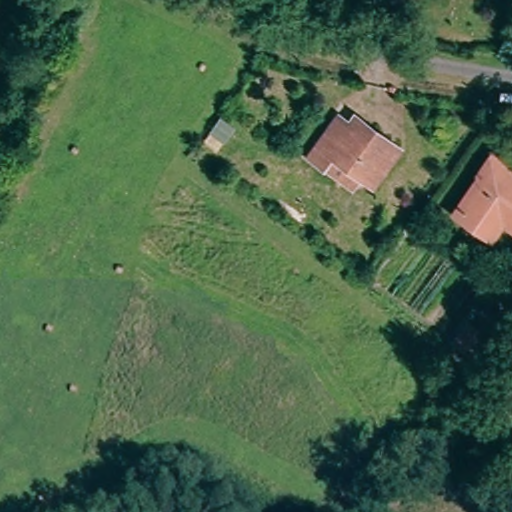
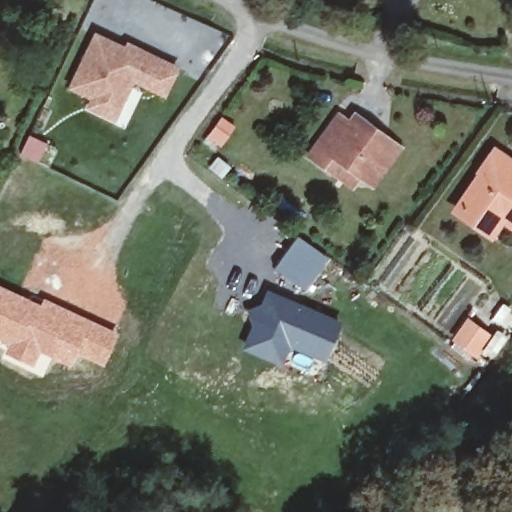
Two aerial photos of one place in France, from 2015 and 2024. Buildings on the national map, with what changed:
new [(125,45),(128,39),(180,66),(165,97),(134,83),(115,122),(85,109),(90,99),(65,89),(95,31),(125,45)]
unchanged [(306,157),(336,115),(355,130),(367,114),(407,144),(402,150),(375,186),(366,199),(325,170),(306,157)]
unchanged [(512,155),(512,224),(506,220),(493,237),(453,209),(500,145),(512,155)]
demolished [(288,190),(324,214),(313,240),(274,217),(288,190)]
new [(43,296),(118,331),(103,366),(76,353),(70,365),(41,353),(33,368),(2,353),(6,345),(0,342),(0,283),(40,301),(43,296)]
new [(340,321),(323,357),(275,336),(266,355),(247,345),(270,293),(340,321)]

